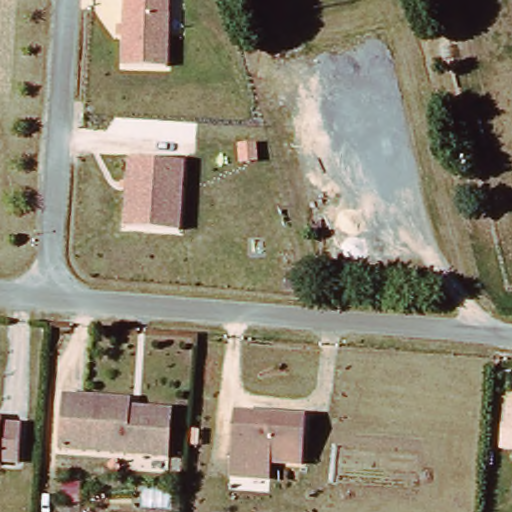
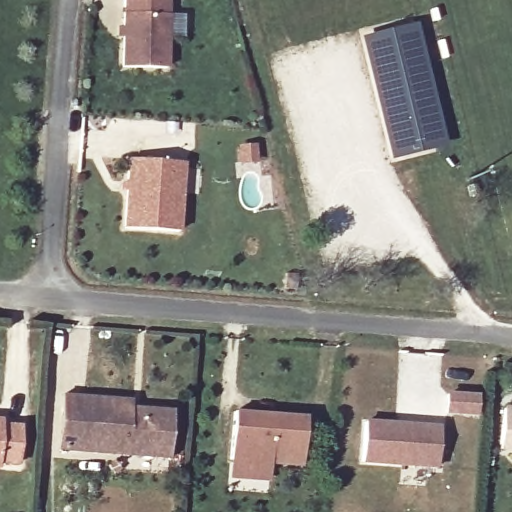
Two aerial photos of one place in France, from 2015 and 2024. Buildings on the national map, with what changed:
unchanged [(113,37),(114,26),(122,27),(123,0),(171,0),(168,66),(121,65),(122,38),(113,37)]
new [(407,28),(436,147),(401,155),(372,36),(407,28)]
unchanged [(126,157),(184,162),(179,231),(122,227),(126,157)]
new [(444,395),(473,397),(472,415),(443,413),(444,395)]
unchanged [(66,453),(71,398),(138,404),(138,418),(150,419),(151,412),(181,415),(177,462),(131,458),(90,456),(66,453)]
unchanged [(238,407),(311,414),(306,466),(233,461),(238,407)]
unchanged [(24,426),(22,462),(0,461),(0,424),(24,426)]
new [(361,424),(437,428),(434,467),(359,463),(361,424)]

